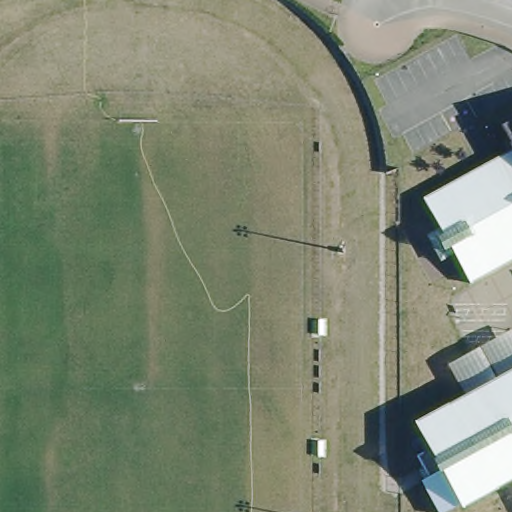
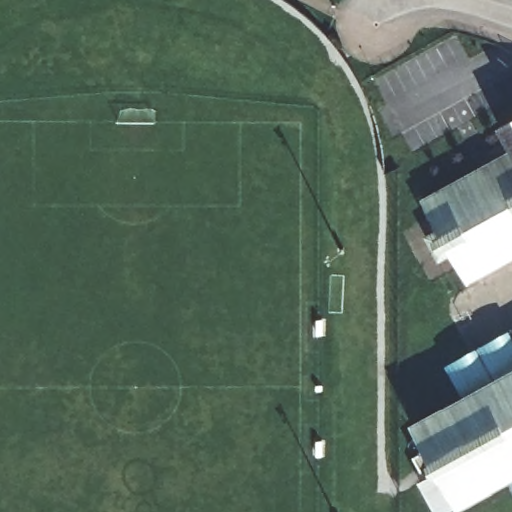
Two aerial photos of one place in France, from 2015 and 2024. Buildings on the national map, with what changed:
unchanged [(503,124),(512,119),(512,140),(503,124)]
unchanged [(473,279),(459,254),(447,262),(431,233),(443,226),(429,202),(512,153),(512,256),(473,279)]
unchanged [(511,483),(460,512),(437,512),(422,484),(439,474),(413,428),(512,374),(512,482),(511,483)]
unchanged [(512,482),(512,484),(511,483),(512,482)]

